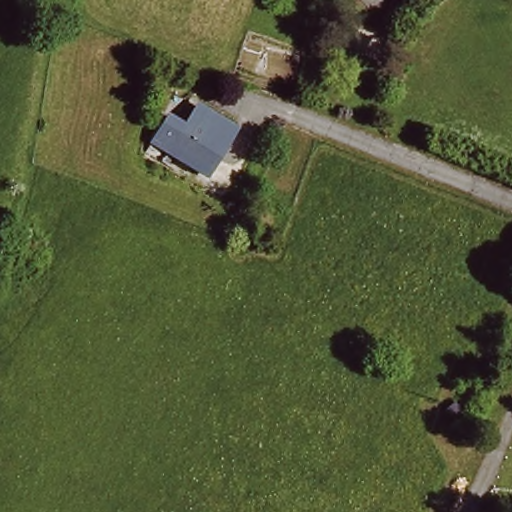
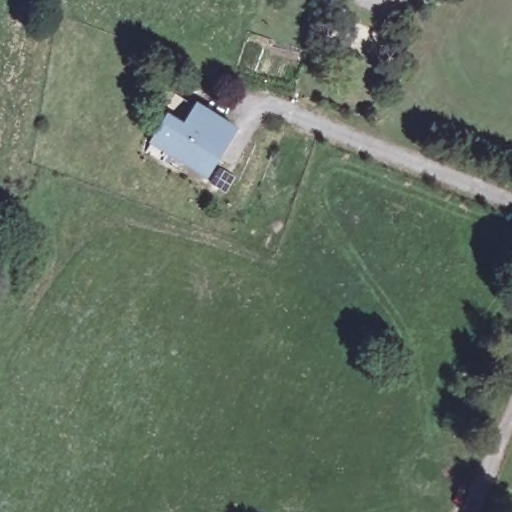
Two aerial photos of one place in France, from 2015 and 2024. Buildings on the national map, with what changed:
unchanged [(242,125),(225,153),(218,149),(209,164),(182,147),(174,160),(153,147),(172,116),(189,126),(191,123),(180,116),(192,98),(202,105),(204,102),(242,125)]

